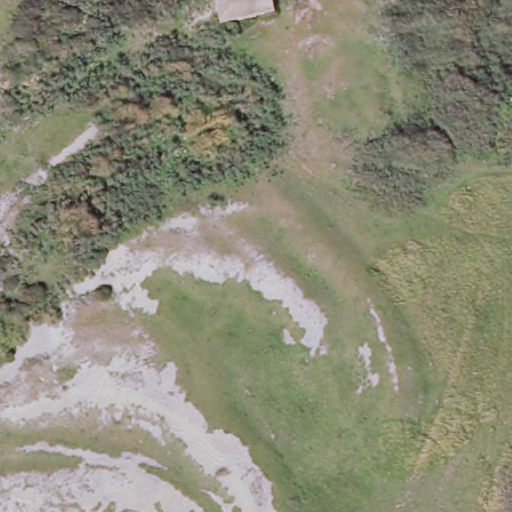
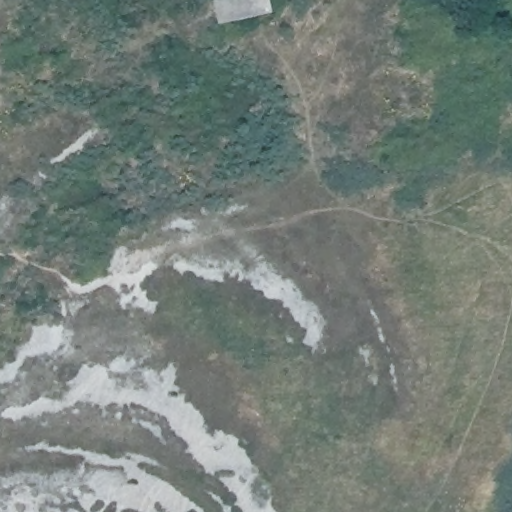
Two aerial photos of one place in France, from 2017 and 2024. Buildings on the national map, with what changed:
unchanged [(237,0),(273,0),(277,18),(227,30),(219,4),(237,0)]

